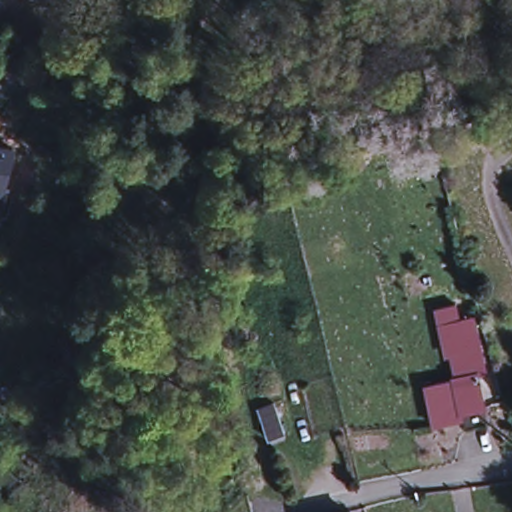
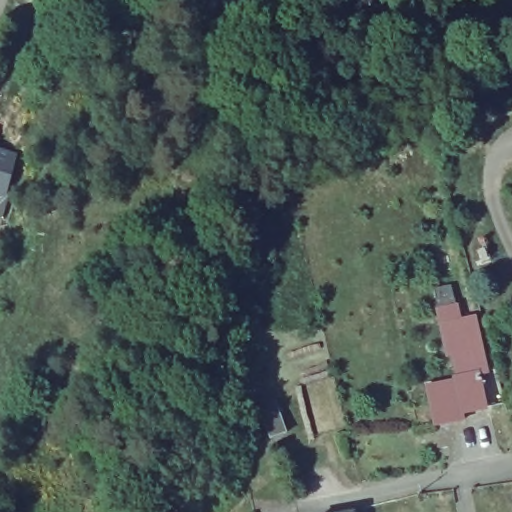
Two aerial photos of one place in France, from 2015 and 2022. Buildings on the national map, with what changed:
unchanged [(1,189),(0,189),(0,148),(11,151),(1,189)]
unchanged [(462,374),(457,350),(452,351),(445,322),(469,317),(475,346),(477,345),(482,370),(491,404),(469,408),(431,418),(424,386),(453,380),(462,378),(462,374)]
unchanged [(285,399),(295,430),(279,435),(269,404),(285,399)]
unchanged [(352,503),(354,512),(312,512),(312,510),(352,503)]

